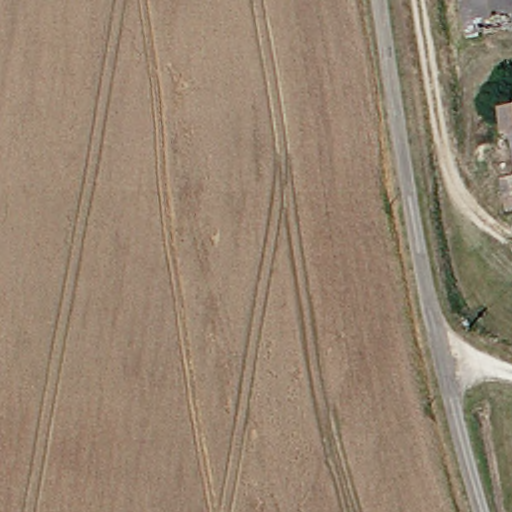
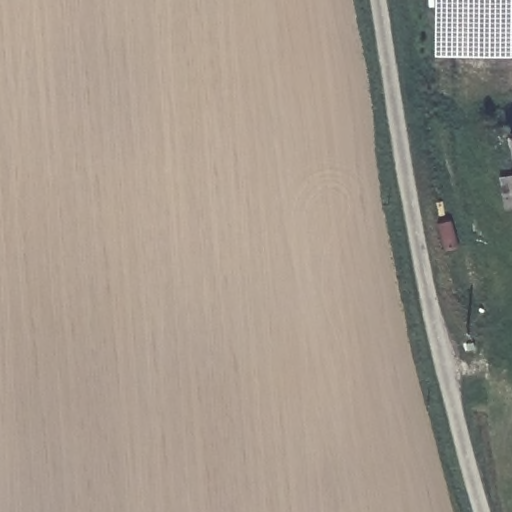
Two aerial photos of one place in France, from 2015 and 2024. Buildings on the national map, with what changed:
new [(512,56),(436,56),(436,0),(512,0),(512,56)]
demolished [(512,26),(467,35),(462,0),(512,0),(512,26)]
demolished [(512,137),(508,138),(504,107),(512,106),(512,137)]
new [(512,134),(512,149),(509,134),(512,134)]
demolished [(503,177),(512,176),(512,211),(510,211),(503,177)]

